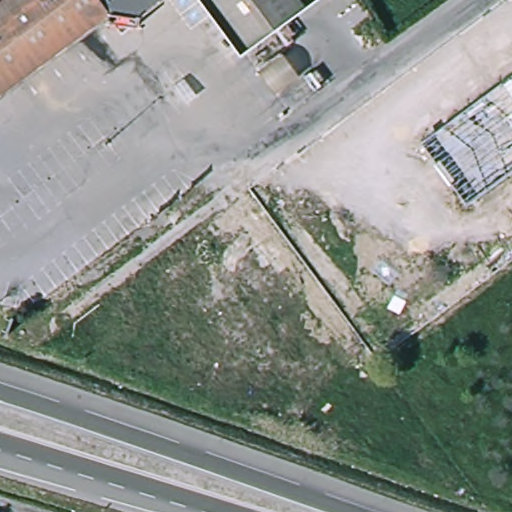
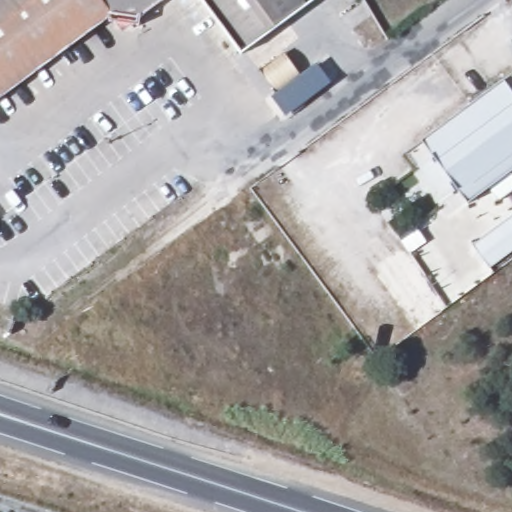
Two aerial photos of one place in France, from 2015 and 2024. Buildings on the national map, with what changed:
unchanged [(111,9),(0,92),(0,0),(154,0),(137,13),(111,9)]
unchanged [(272,39),(252,54),(212,0),(300,0),(263,28),(272,39)]
unchanged [(422,143),(512,76),(512,171),(469,204),(422,143)]
new [(512,216),(512,252),(490,269),(473,248),(512,216)]

